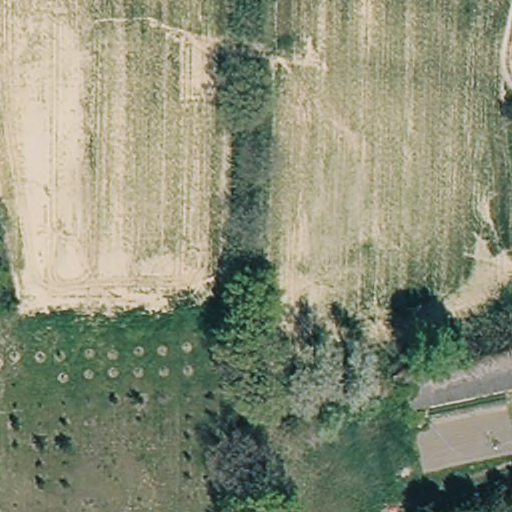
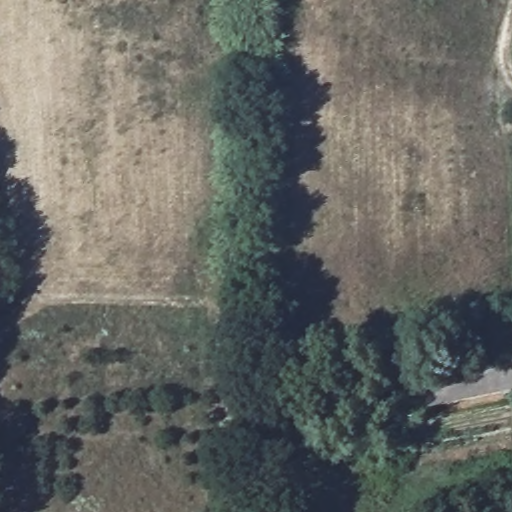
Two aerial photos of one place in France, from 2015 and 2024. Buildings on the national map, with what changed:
unchanged [(410,410),(402,374),(512,351),(512,390),(410,410)]

